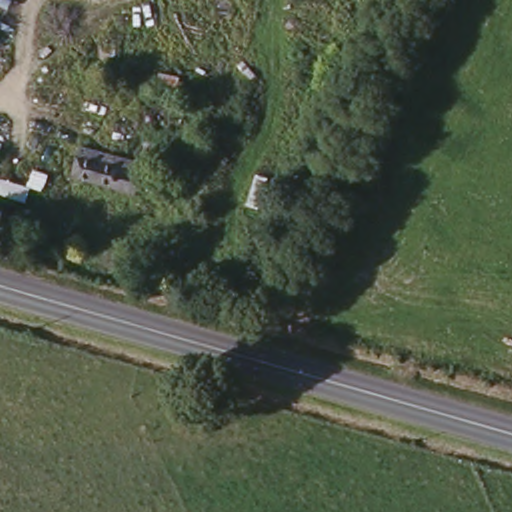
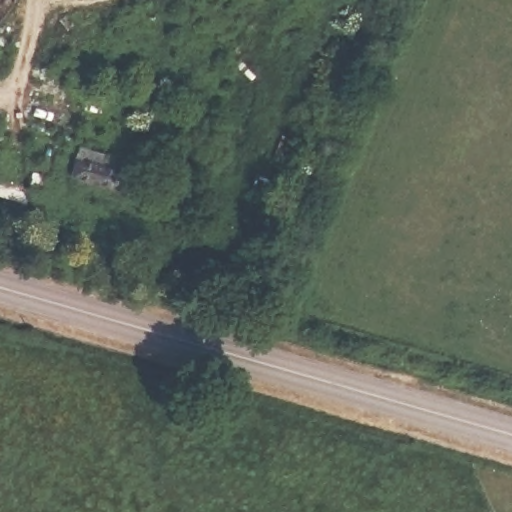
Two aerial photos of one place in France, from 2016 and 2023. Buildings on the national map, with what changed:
unchanged [(79,183),(89,163),(150,182),(143,202),(79,183)]

